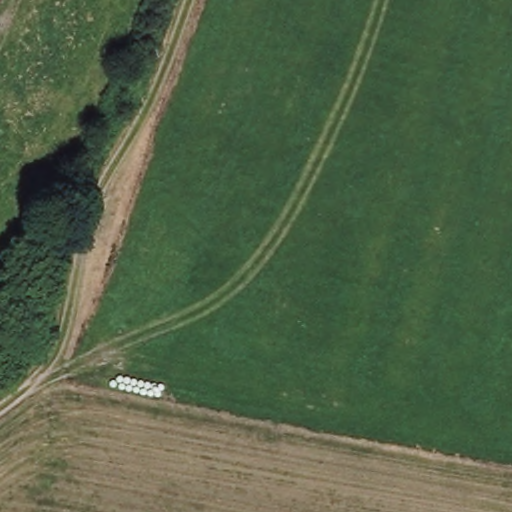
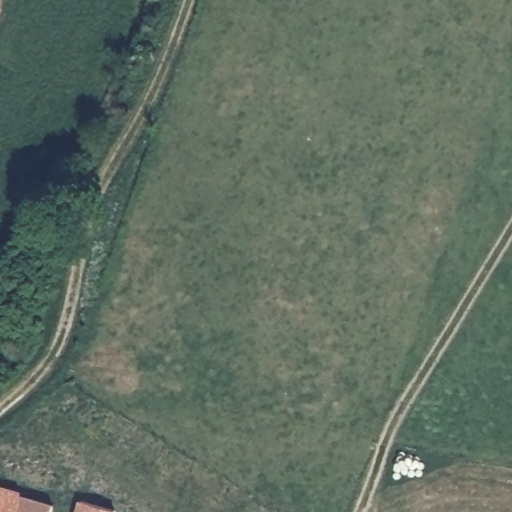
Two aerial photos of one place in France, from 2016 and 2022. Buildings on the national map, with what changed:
new [(0,512),(0,484),(22,490),(22,494),(52,502),(50,512),(0,512)]

